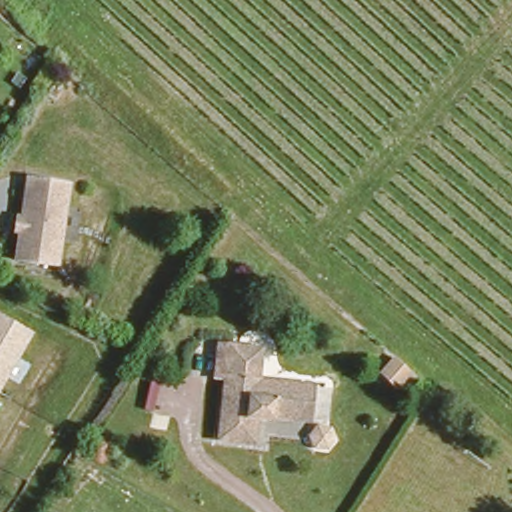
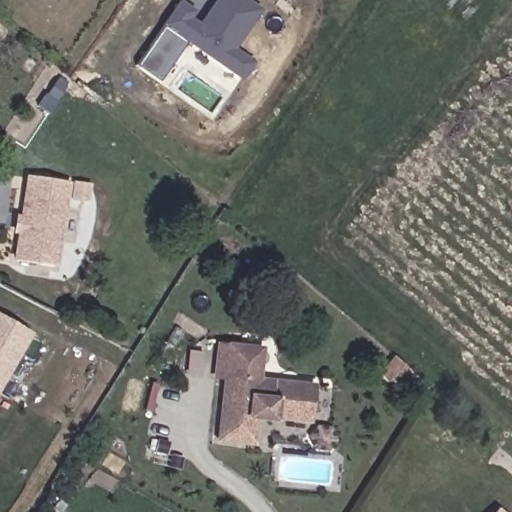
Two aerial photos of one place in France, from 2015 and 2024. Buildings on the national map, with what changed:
new [(252,62),(242,78),(163,26),(178,2),(192,12),(188,19),(201,27),(217,4),(215,2),(216,0),(245,0),(259,9),(232,49),(252,62)]
unchanged [(26,172),(55,174),(61,174),(50,261),(17,257),(21,227),(26,172)]
unchanged [(0,382),(0,324),(25,338),(0,382)]
unchanged [(315,388),(310,422),(273,417),(272,422),(255,420),(252,441),(217,435),(227,372),(214,370),(219,332),(245,336),(263,338),(260,361),(257,380),(315,388)]
new [(497,507),(502,512),(493,512),(497,507)]

